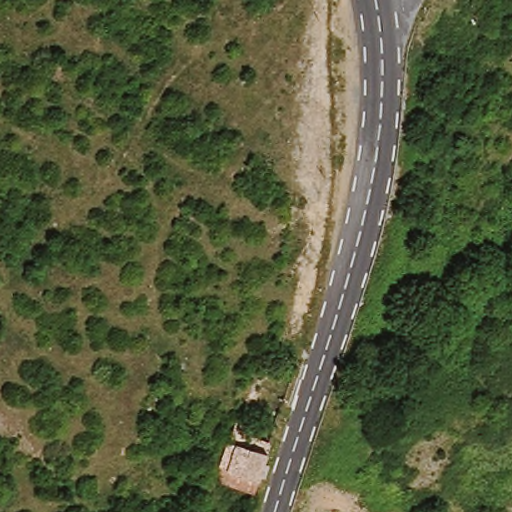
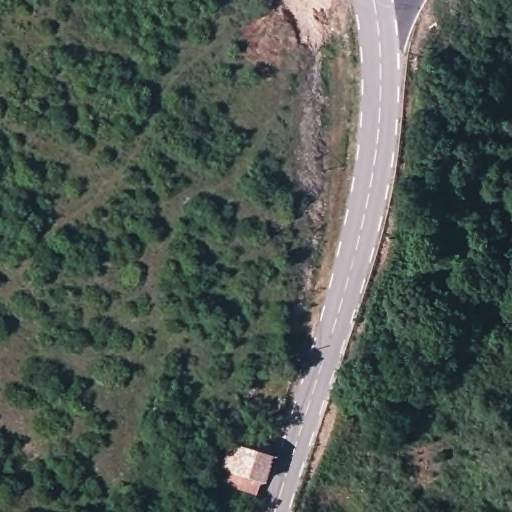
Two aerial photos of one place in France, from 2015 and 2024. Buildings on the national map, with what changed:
unchanged [(276,457),(264,503),(236,491),(237,479),(219,470),(232,441),(276,457)]

